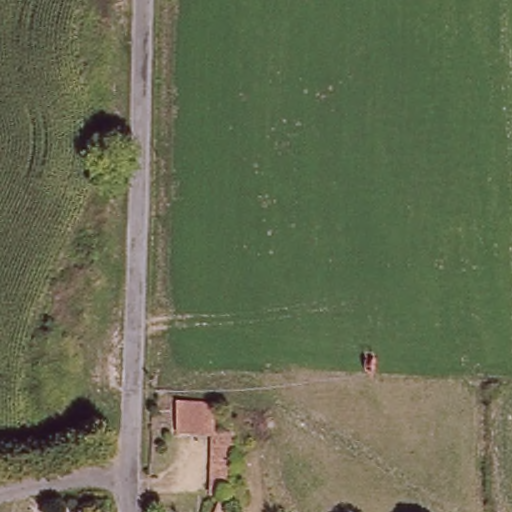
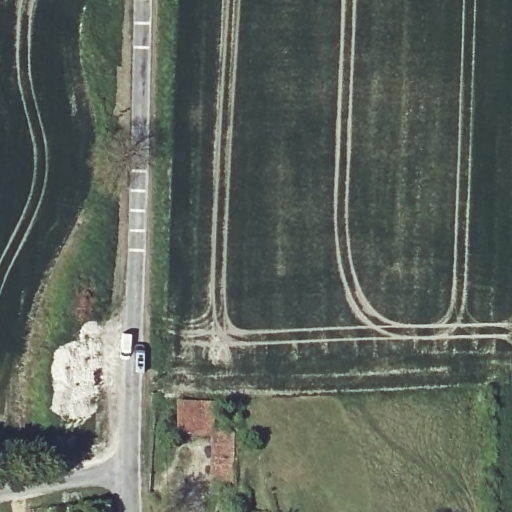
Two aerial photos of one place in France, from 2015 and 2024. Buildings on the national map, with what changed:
unchanged [(204,401),(205,430),(169,432),(167,403),(204,401)]
unchanged [(227,429),(230,479),(208,480),(205,430),(227,429)]

